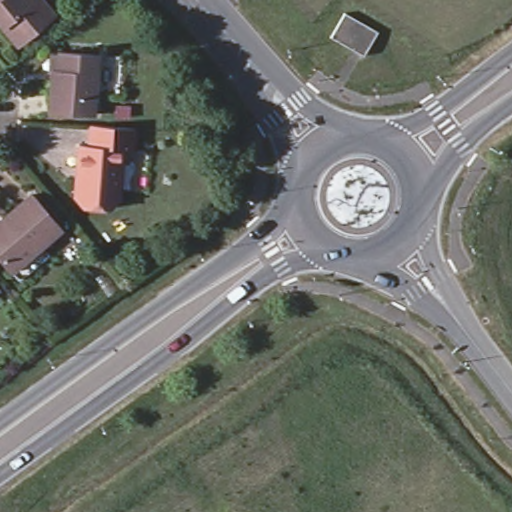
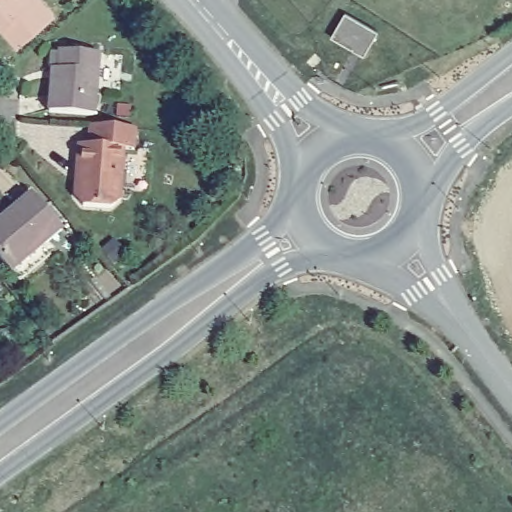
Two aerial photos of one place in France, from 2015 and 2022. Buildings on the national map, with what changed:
unchanged [(0,24),(0,0),(46,0),(58,15),(18,47),(0,24)]
unchanged [(364,61),(333,42),(346,21),(376,39),(364,61)]
unchanged [(50,113),(53,82),(61,82),(63,55),(101,57),(98,117),(50,113)]
unchanged [(108,210),(82,207),(73,195),(79,142),(89,143),(91,124),(134,127),(133,147),(123,147),(116,202),(108,210)]
unchanged [(13,270),(0,255),(0,221),(35,192),(64,227),(43,245),(52,256),(21,280),(13,270)]

